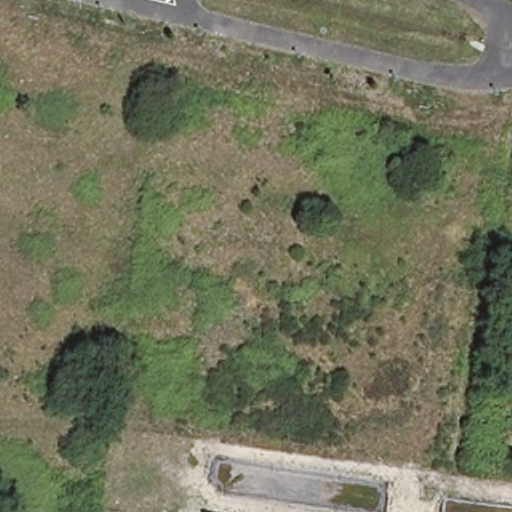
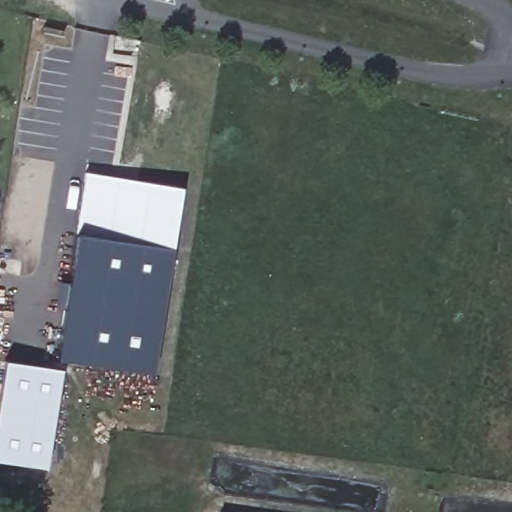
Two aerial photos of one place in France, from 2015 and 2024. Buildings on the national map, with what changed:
new [(88,174),(183,185),(157,370),(62,358),(88,174)]
new [(49,463),(0,455),(0,408),(6,358),(63,366),(49,463)]

